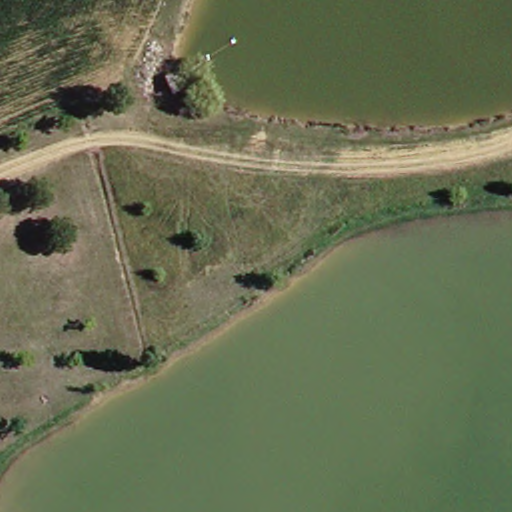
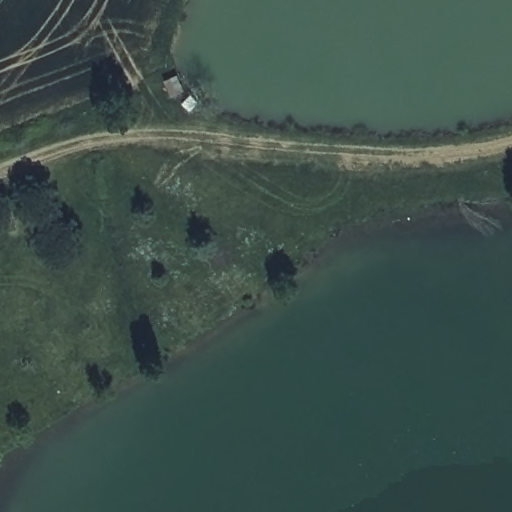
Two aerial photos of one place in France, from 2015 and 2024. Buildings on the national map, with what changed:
unchanged [(183,70),(190,81),(175,89),(170,77),(183,70)]

